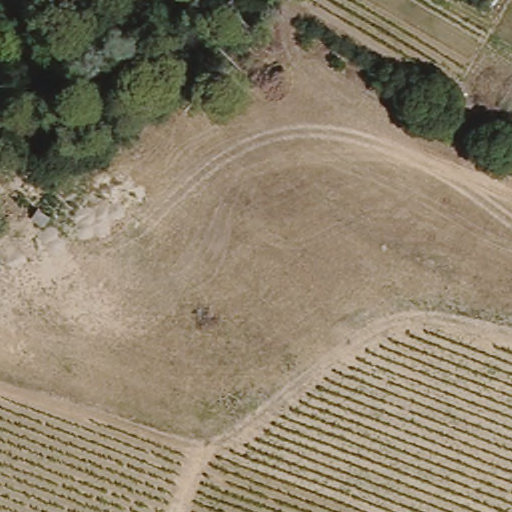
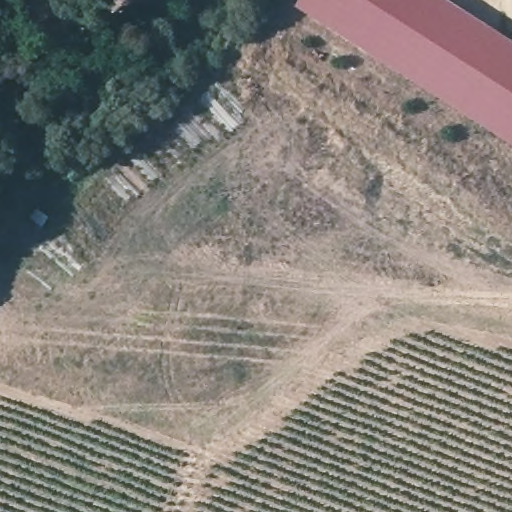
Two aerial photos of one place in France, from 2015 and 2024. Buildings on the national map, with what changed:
new [(449,0),(512,40),(512,148),(390,70),(294,6),(298,0),(449,0)]
unchanged [(53,216),(43,229),(32,219),(38,210),(53,216)]

